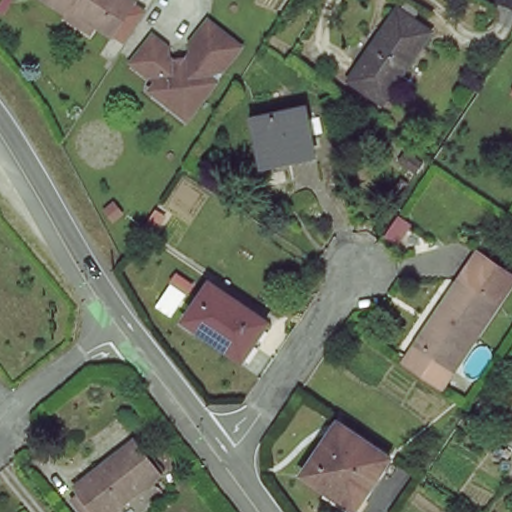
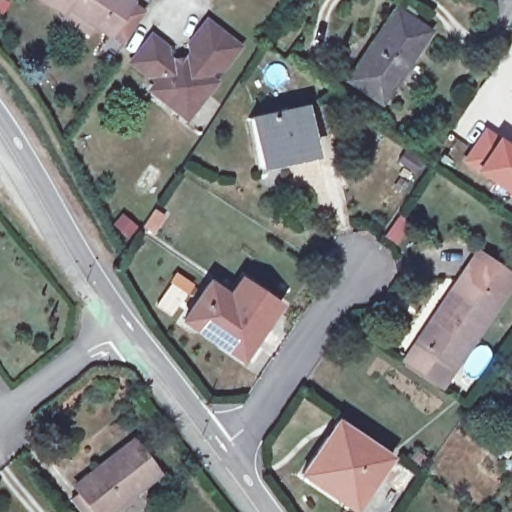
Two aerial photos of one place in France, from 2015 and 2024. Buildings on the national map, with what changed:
unchanged [(61,9),(48,0),(128,0),(131,2),(109,35),(85,19),(79,28),(58,14),(61,9)]
unchanged [(383,99),(348,76),(394,9),(429,32),(383,99)]
unchanged [(175,103),(153,84),(162,70),(157,66),(152,68),(134,55),(154,31),(169,43),(172,55),(187,56),(196,44),(193,43),(211,19),(239,41),(239,45),(230,56),(210,69),(215,76),(204,90),(187,112),(175,103)]
unchanged [(512,87),(512,93),(510,91),(512,87)]
unchanged [(248,114),(308,104),(320,165),(258,174),(248,114)]
new [(485,129),(512,149),(512,194),(463,161),(485,129)]
unchanged [(512,271),(512,276),(454,366),(413,339),(475,249),(512,271)]
new [(228,295),(243,273),(284,302),(270,324),(228,295)]
unchanged [(228,295),(270,324),(242,362),(180,319),(208,280),(228,295)]
unchanged [(439,391),(403,361),(410,342),(455,370),(439,391)]
unchanged [(337,424),(389,461),(352,512),(351,512),(301,477),(337,424)]
unchanged [(154,469),(104,512),(91,512),(70,487),(127,439),(154,469)]

